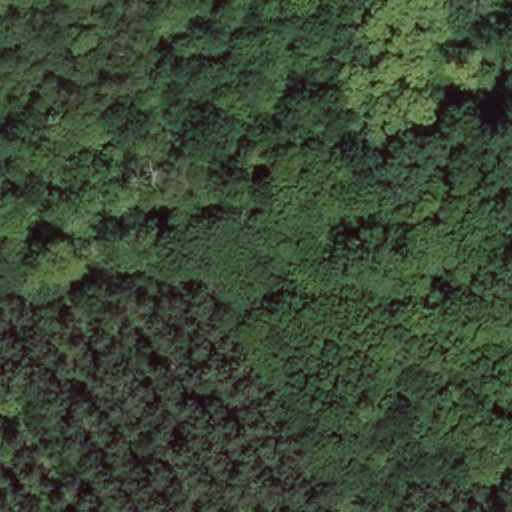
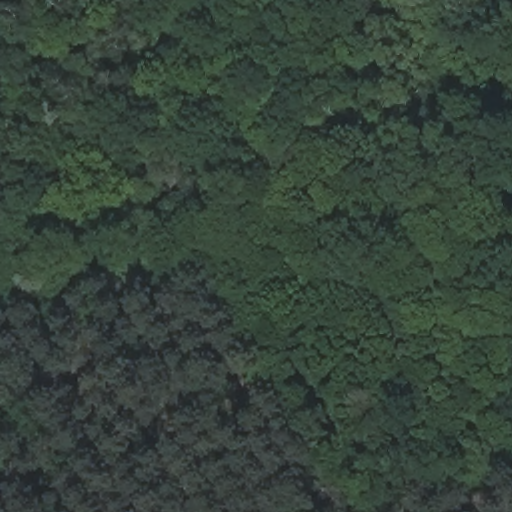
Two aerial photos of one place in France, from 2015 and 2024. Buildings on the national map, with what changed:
[]

